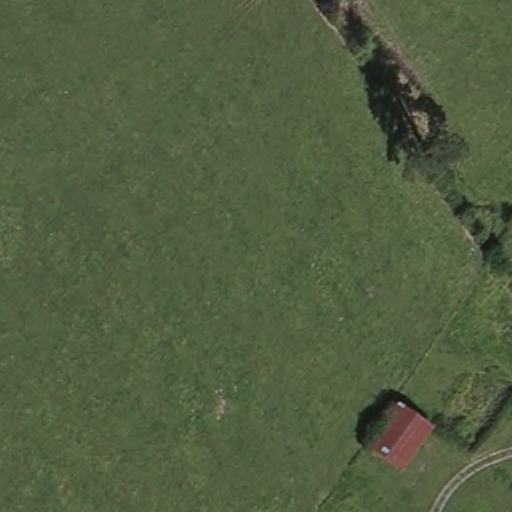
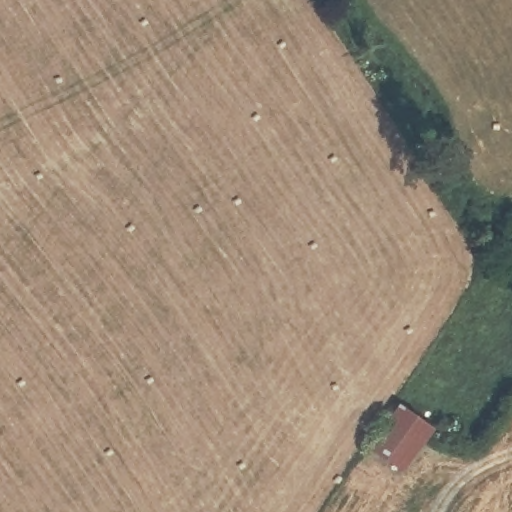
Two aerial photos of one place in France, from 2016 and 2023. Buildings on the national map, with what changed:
unchanged [(396,403),(430,427),(402,469),(366,446),(396,403)]

